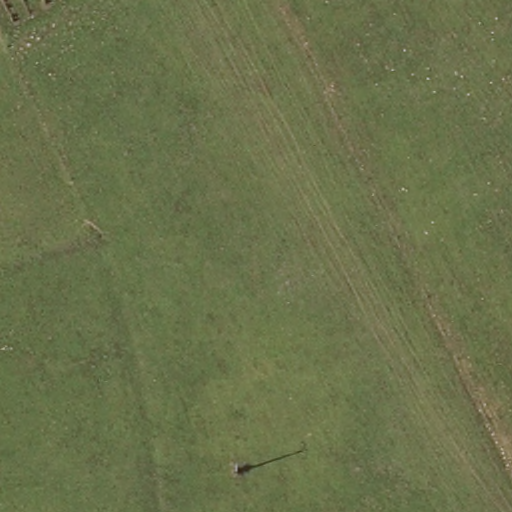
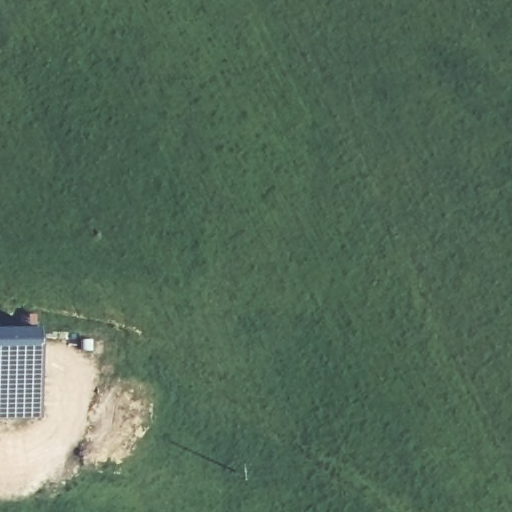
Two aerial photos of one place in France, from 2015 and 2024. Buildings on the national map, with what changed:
new [(35,328),(38,419),(0,419),(0,329),(35,328)]

